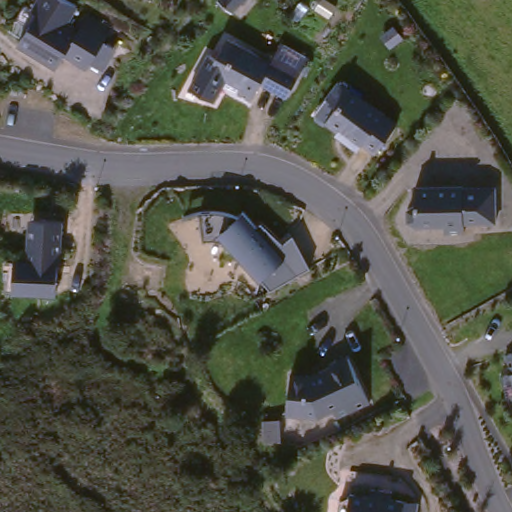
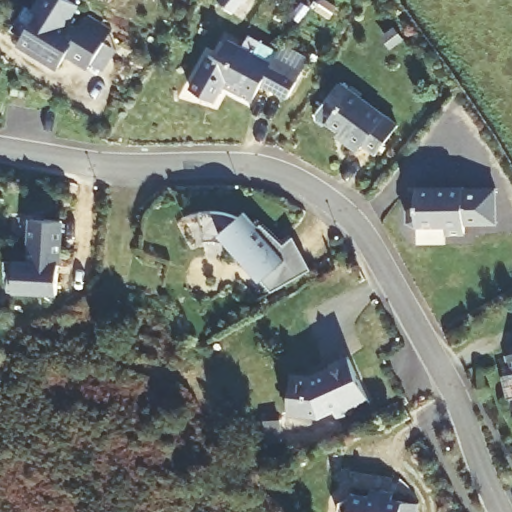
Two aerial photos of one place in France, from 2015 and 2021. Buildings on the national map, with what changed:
unchanged [(101,77),(89,69),(84,75),(62,61),(54,74),(16,50),(37,19),(34,17),(45,0),(60,0),(78,11),(65,29),(78,37),(88,22),(111,37),(103,48),(116,56),(101,77)]
unchanged [(239,17),(218,0),(252,0),(239,17)]
unchanged [(270,75),(274,68),(299,82),(283,109),(259,96),(248,113),(236,106),(239,100),(224,91),(230,81),(218,74),(231,53),(270,75)]
unchanged [(394,139),(371,167),(359,157),(353,164),(338,152),(343,147),(324,131),(335,119),(326,111),(340,94),(394,139)]
unchanged [(492,197),(492,234),(459,235),(460,246),(441,246),(440,236),(411,236),(404,232),(404,221),(411,217),(411,199),(492,197)]
unchanged [(246,212),(286,259),(260,280),(229,244),(201,242),(204,208),(246,212)]
unchanged [(8,257),(27,258),(30,215),(61,218),(56,291),(6,286),(8,257)]
unchanged [(509,378),(505,361),(512,359),(512,378),(509,378)]
unchanged [(366,412),(334,429),(328,418),(314,426),(283,423),(285,386),(304,387),(324,377),(323,374),(340,365),(366,412)]
unchanged [(278,427),(281,447),(266,450),(263,429),(278,427)]
unchanged [(346,506),(346,503),(366,505),(366,497),(389,499),(389,507),(416,508),(415,512),(336,512),(336,511),(346,506)]

